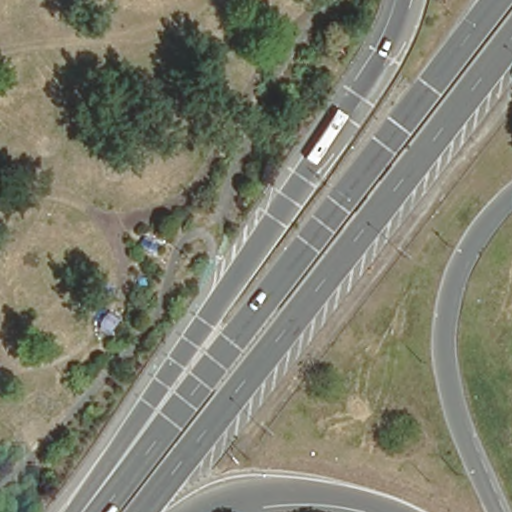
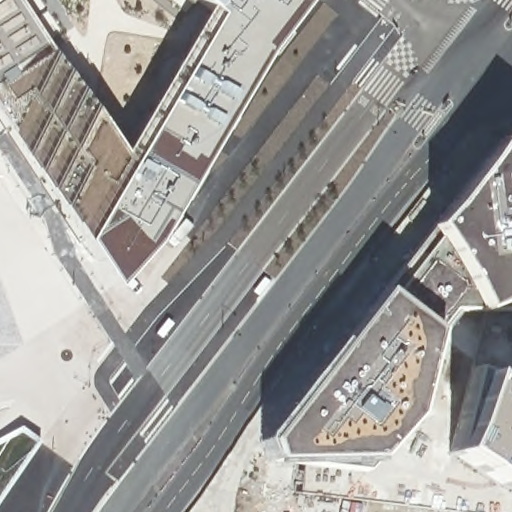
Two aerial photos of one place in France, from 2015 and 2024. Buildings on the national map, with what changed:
new [(155,243),(114,288),(83,245),(0,119),(0,0),(304,0),(263,53),(155,243)]
new [(338,339),(342,342),(381,290),(428,227),(438,216),(470,177),(496,139),(512,152),(512,303),(508,302),(497,303),(476,311),(474,312),(469,303),(461,301),(436,331),(414,415),(375,462),(271,463),(265,442),(265,437),(338,339)]
new [(449,453),(460,431),(480,375),(470,369),(512,385),(512,489),(502,487),(449,453)]
new [(22,427),(42,441),(0,502),(0,438),(22,427)]

